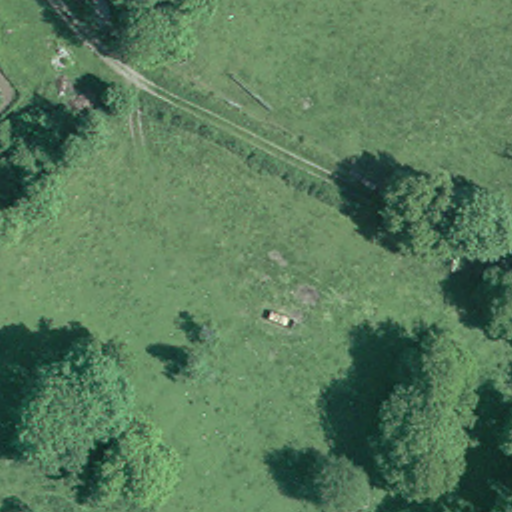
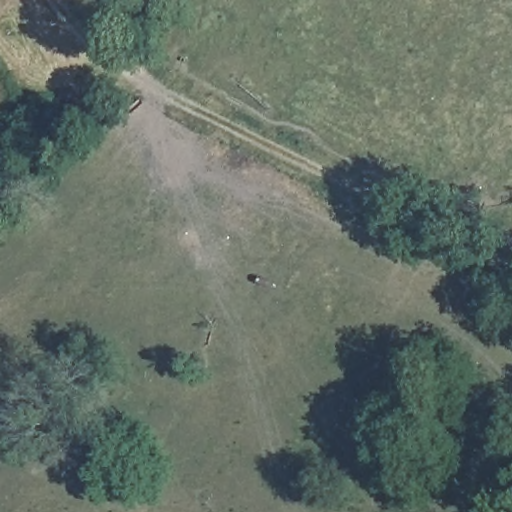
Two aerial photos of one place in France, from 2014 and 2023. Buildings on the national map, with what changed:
[]

